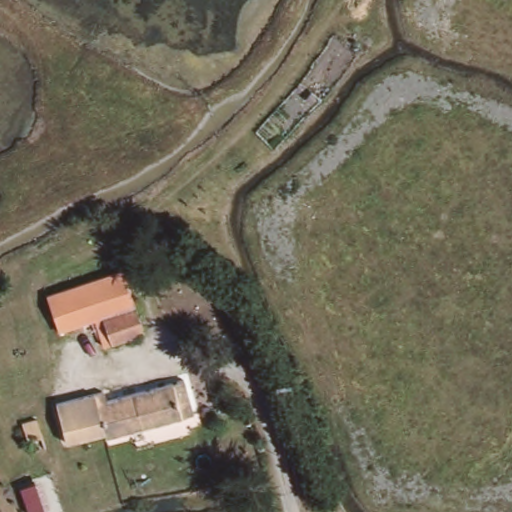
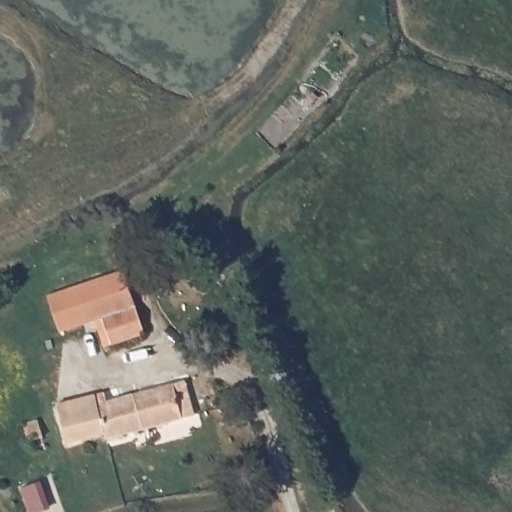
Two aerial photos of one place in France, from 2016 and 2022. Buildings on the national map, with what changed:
unchanged [(119,271),(132,310),(144,338),(105,351),(97,322),(55,335),(42,295),(119,271)]
unchanged [(186,380),(196,413),(107,438),(98,409),(97,404),(186,380)]
unchanged [(97,404),(98,409),(105,432),(66,442),(55,401),(104,391),(105,402),(97,404)]
unchanged [(33,421),(39,438),(22,444),(18,427),(33,421)]

